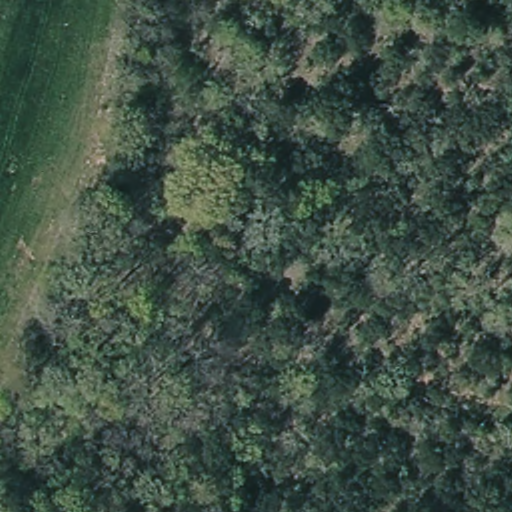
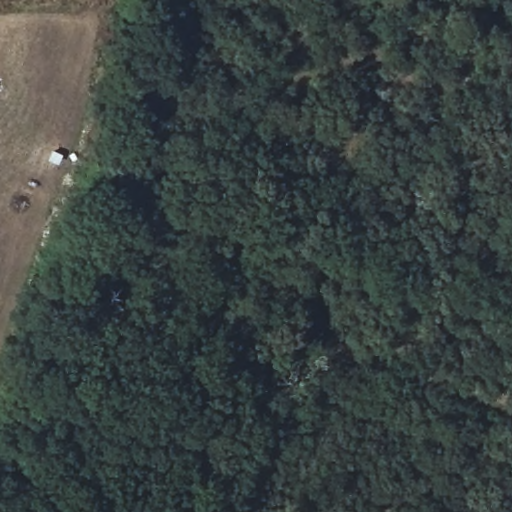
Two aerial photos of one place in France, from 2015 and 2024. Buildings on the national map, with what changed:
[]

